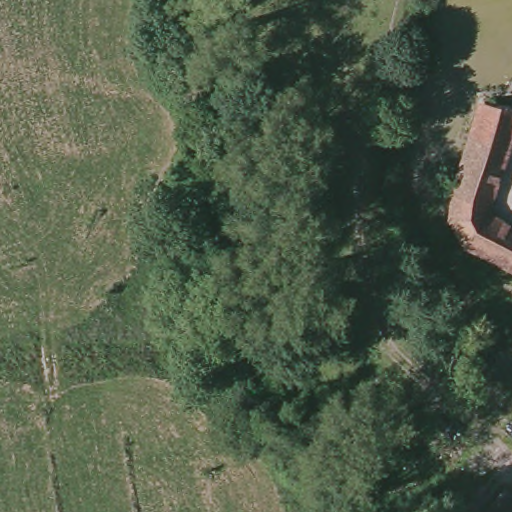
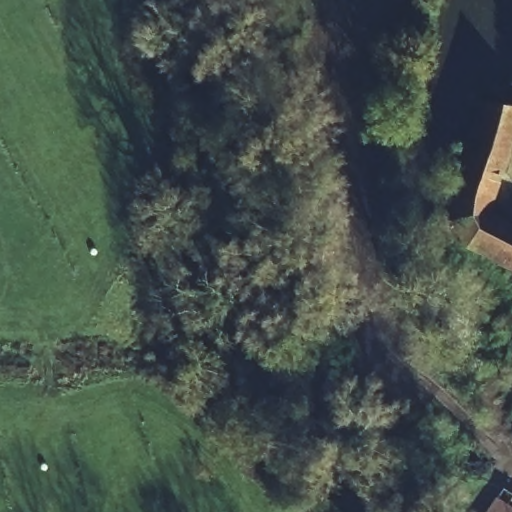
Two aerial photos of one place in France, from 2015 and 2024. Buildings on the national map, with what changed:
unchanged [(456,232),(443,216),(459,162),(452,157),(453,149),(462,149),(471,121),(467,119),(468,112),(474,111),(480,96),(485,97),(487,90),(496,90),(495,96),(505,97),(507,91),(512,91),(512,125),(481,212),(512,228),(512,273),(453,241),(456,232)]
demolished [(512,496),(512,512),(482,512),(499,486),(512,496)]
new [(497,496),(512,505),(512,512),(486,512),(497,496)]

